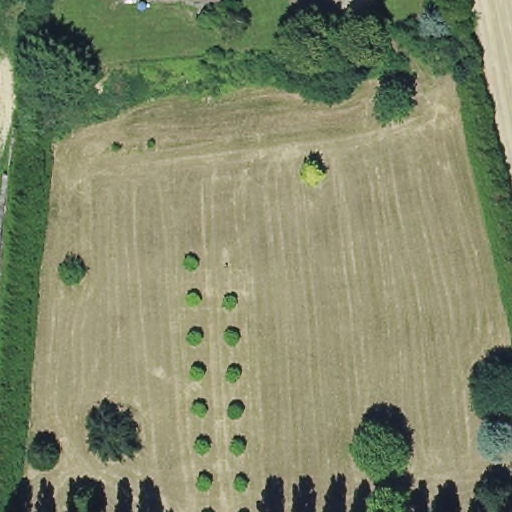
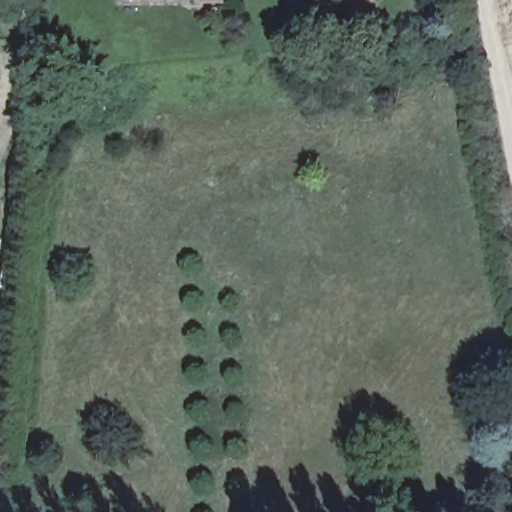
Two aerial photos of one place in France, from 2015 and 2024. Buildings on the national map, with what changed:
unchanged [(220,5),(140,3),(127,3),(127,0),(221,0),(220,5)]

